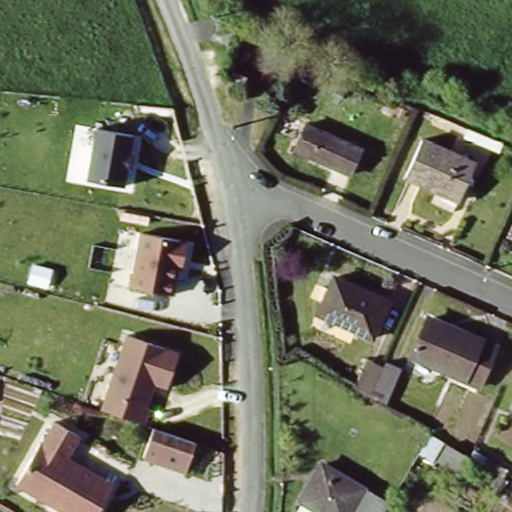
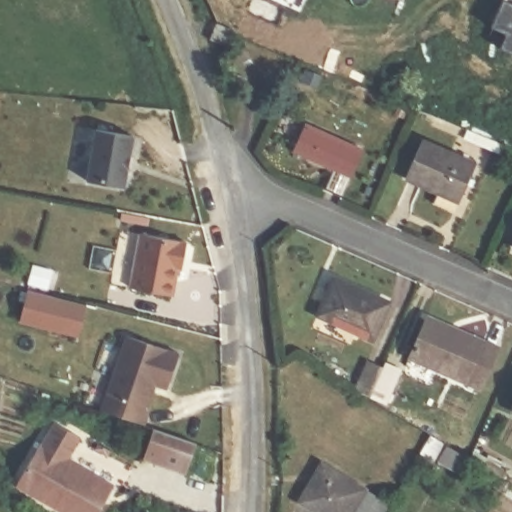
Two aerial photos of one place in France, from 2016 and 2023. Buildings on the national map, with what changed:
new [(512,53),(502,48),(509,33),(493,26),(505,0),(512,0),(512,53)]
unchanged [(235,21),(227,38),(210,30),(217,14),(235,21)]
unchanged [(86,178),(95,129),(133,135),(125,185),(86,178)]
unchanged [(347,180),(307,162),(310,158),(294,151),(304,129),(360,154),(347,180)]
unchanged [(407,177),(424,139),(475,162),(458,200),(435,190),(407,177)]
unchanged [(187,239),(182,268),(178,267),(174,293),(130,285),(138,231),(187,239)]
unchanged [(327,282),(383,303),(368,341),(313,319),(327,282)]
new [(28,291),(87,305),(80,336),(21,322),(28,291)]
unchanged [(410,354),(427,316),(454,329),(456,326),(497,345),(478,386),(410,354)]
unchanged [(178,351),(167,387),(155,384),(142,422),(100,407),(125,334),(178,351)]
unchanged [(383,409),(370,401),(372,393),(357,387),(370,352),(386,358),(383,365),(397,370),(383,409)]
unchanged [(63,512),(17,485),(53,420),(81,436),(70,458),(113,484),(98,512),(63,512)]
unchanged [(196,441),(185,472),(143,458),(155,427),(196,441)]
unchanged [(432,465),(417,456),(429,437),(443,445),(432,465)]
unchanged [(464,476),(440,462),(448,448),(471,461),(472,462),(464,476)]
unchanged [(314,512),(295,500),(317,464),(358,489),(355,496),(365,502),(370,495),(385,504),(380,512),(314,512)]

